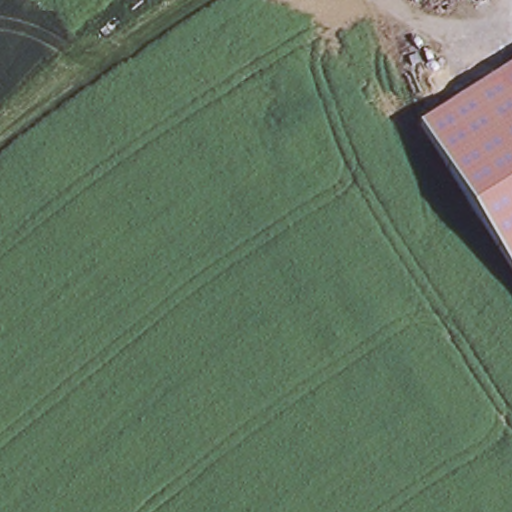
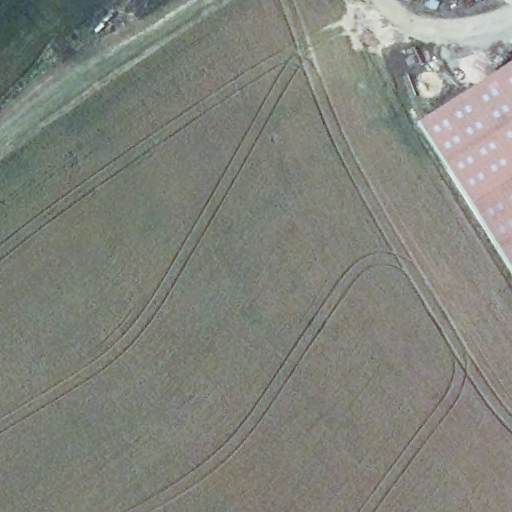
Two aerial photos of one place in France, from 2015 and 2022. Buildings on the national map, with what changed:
unchanged [(512,66),(512,270),(420,125),(512,66)]

